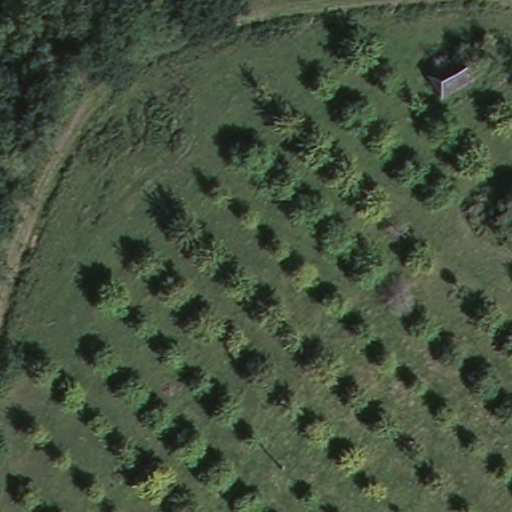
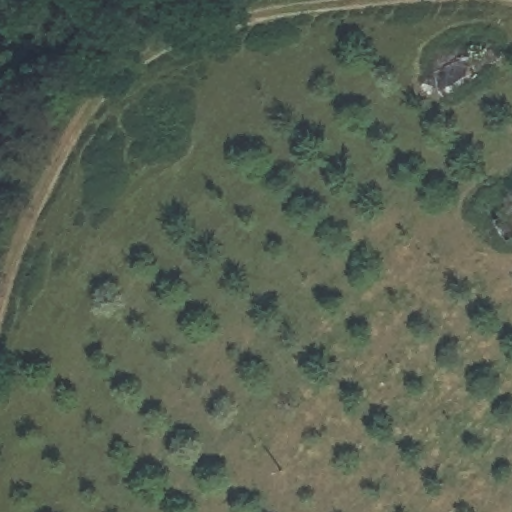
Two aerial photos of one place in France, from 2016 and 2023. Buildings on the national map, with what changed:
unchanged [(425,72),(421,62),(444,52),(449,61),(480,47),(492,72),(429,102),(416,76),(425,72)]

